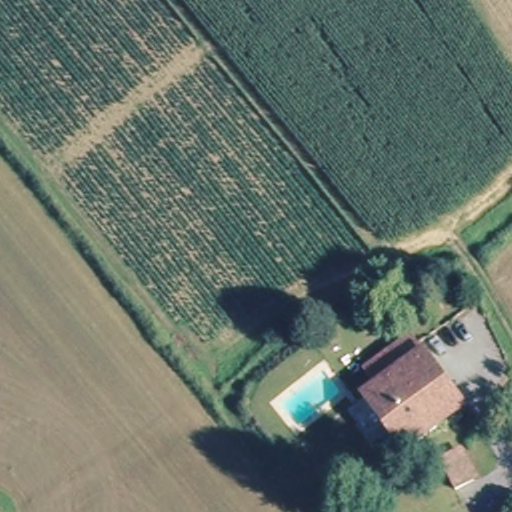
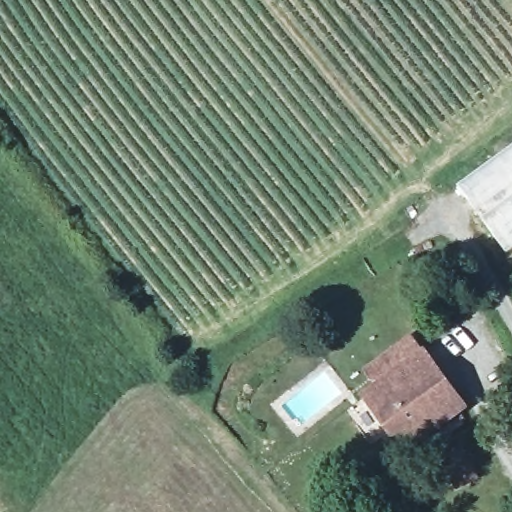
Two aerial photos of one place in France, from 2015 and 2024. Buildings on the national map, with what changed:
new [(512,248),(506,252),(458,185),(512,146),(512,248)]
unchanged [(421,353),(461,406),(403,454),(361,398),(421,353)]
unchanged [(453,458),(466,447),(488,472),(473,483),(453,458)]

